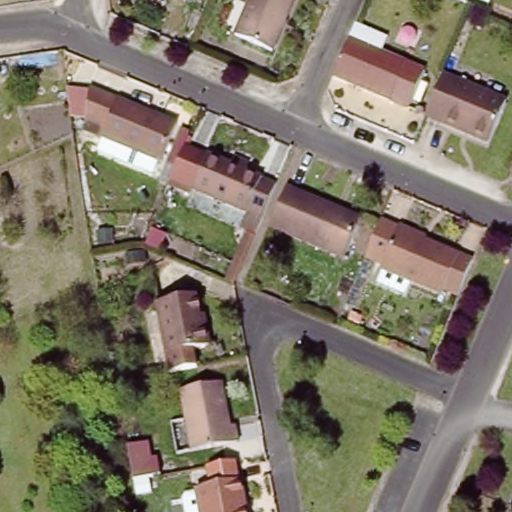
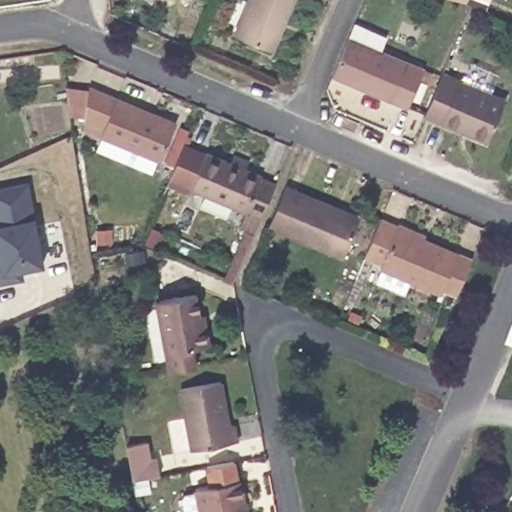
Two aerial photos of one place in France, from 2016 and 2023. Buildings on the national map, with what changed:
unchanged [(235,41),(252,0),(296,0),(272,57),(235,41)]
unchanged [(425,68),(408,107),(333,75),(350,36),(425,68)]
unchanged [(512,99),(493,141),(430,114),(448,72),(512,99)]
unchanged [(177,127),(160,165),(102,139),(105,130),(85,122),(91,89),(177,127)]
unchanged [(255,226),(239,219),(242,213),(188,188),(202,157),(232,170),(236,162),(245,167),(242,175),(257,181),(257,184),(271,189),(255,226)]
new [(45,260),(42,259),(43,265),(21,269),(23,279),(0,283),(0,187),(30,182),(37,217),(45,260)]
unchanged [(360,219),(343,258),(270,226),(287,186),(360,219)]
unchanged [(456,298),(441,291),(439,296),(378,270),(397,226),(413,233),(412,237),(470,263),(456,298)]
unchanged [(183,364),(165,367),(162,351),(153,302),(193,293),(197,314),(202,313),(204,324),(207,341),(189,345),(192,362),(183,364)]
unchanged [(225,426),(231,425),(233,443),(188,451),(177,388),(217,382),(225,426)]
new [(145,443),(149,460),(156,458),(160,476),(132,481),(126,447),(145,443)]
unchanged [(237,485),(242,512),(196,512),(192,493),(237,485)]

